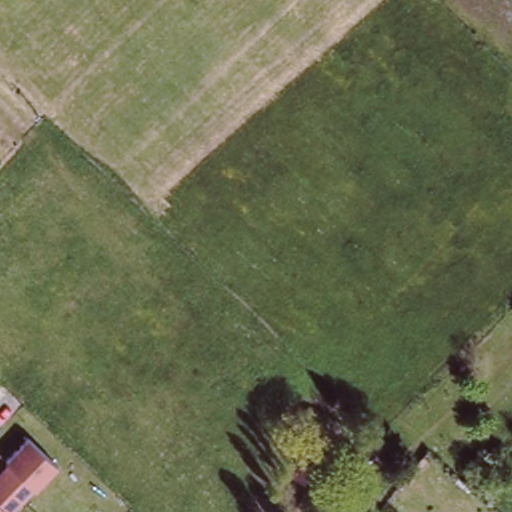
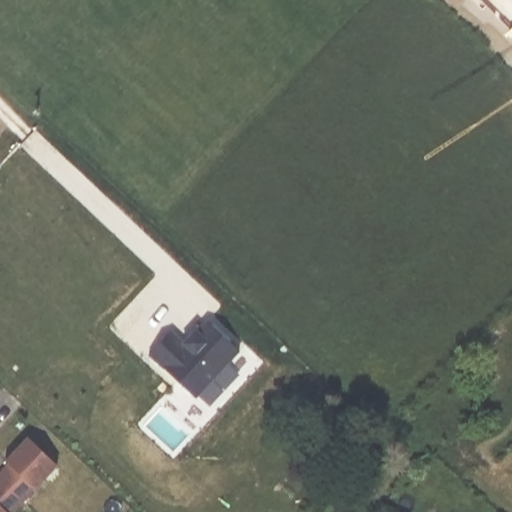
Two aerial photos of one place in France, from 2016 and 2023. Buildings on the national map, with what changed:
new [(196,398),(148,354),(171,330),(183,342),(206,317),(241,351),(196,398)]
unchanged [(11,512),(0,512),(0,472),(7,463),(4,461),(25,438),(55,466),(11,512)]

